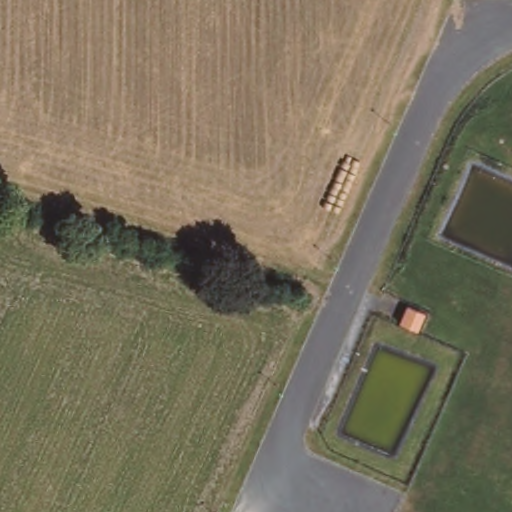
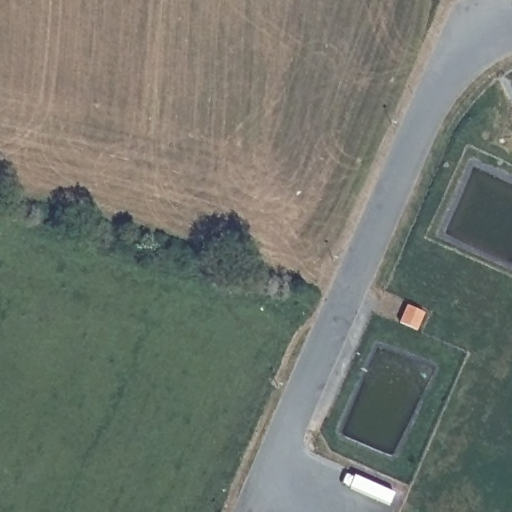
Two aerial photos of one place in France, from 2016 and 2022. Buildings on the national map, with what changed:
unchanged [(406,307),(419,315),(414,329),(400,322),(406,307)]

